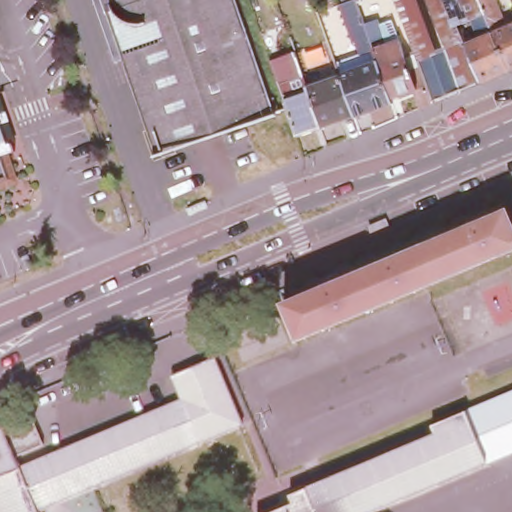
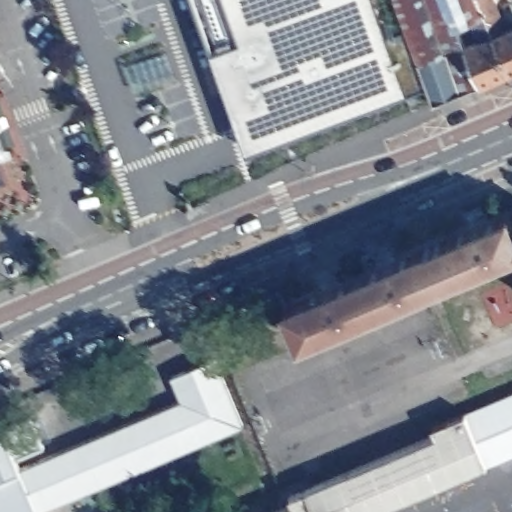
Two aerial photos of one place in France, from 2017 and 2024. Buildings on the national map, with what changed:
demolished [(107,6),(105,0),(130,0),(115,5),(114,4),(107,6)]
demolished [(239,0),(277,111),(209,135),(167,15),(146,23),(142,25),(137,25),(133,25),(129,22),(124,20),(120,15),(117,11),(115,5),(130,0),(239,0)]
new [(373,0),(387,38),(407,31),(427,88),(249,151),(242,134),(195,0),(373,0)]
demolished [(342,73),(338,62),(362,53),(343,0),(358,0),(372,41),(384,36),(385,41),(398,36),(411,71),(422,66),(435,99),(421,105),(415,87),(392,96),(393,100),(357,114),(342,73)]
unchanged [(509,67),(481,80),(435,99),(422,66),(399,0),(498,0),(505,15),(501,21),(503,26),(512,23),(512,66),(509,67)]
demolished [(282,85),(297,80),(289,59),(298,55),(309,85),(323,126),(300,135),(282,85)]
demolished [(309,85),(342,73),(357,114),(323,126),(309,85)]
unchanged [(0,150),(0,126),(7,147),(0,150)]
unchanged [(11,157),(2,160),(11,186),(0,190),(0,150),(7,147),(11,157)]
unchanged [(512,228),(512,254),(299,343),(283,306),(506,215),(512,228)]
unchanged [(187,407),(175,380),(218,361),(245,427),(40,512),(25,473),(187,407)]
unchanged [(296,507),(292,499),(512,400),(512,458),(384,512),(285,512),(296,507)]
unchanged [(0,436),(8,433),(25,473),(40,512),(0,512),(0,436)]

